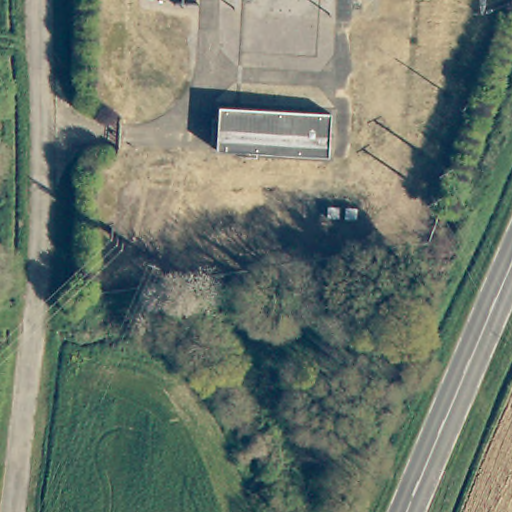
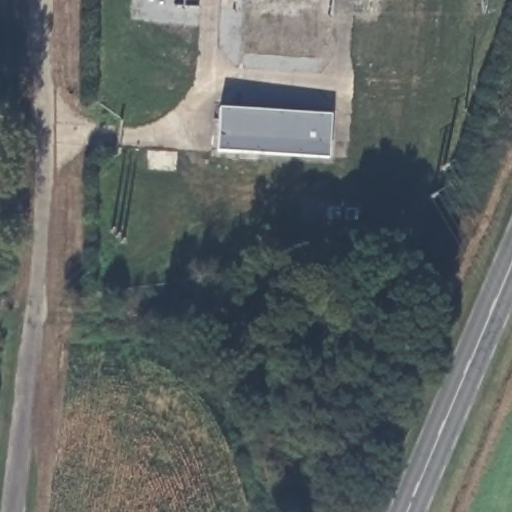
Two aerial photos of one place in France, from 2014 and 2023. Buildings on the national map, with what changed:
unchanged [(215,158),(216,114),(330,117),(329,161),(215,158)]

